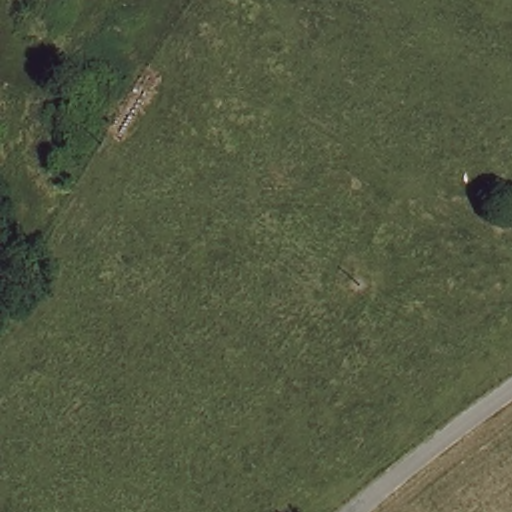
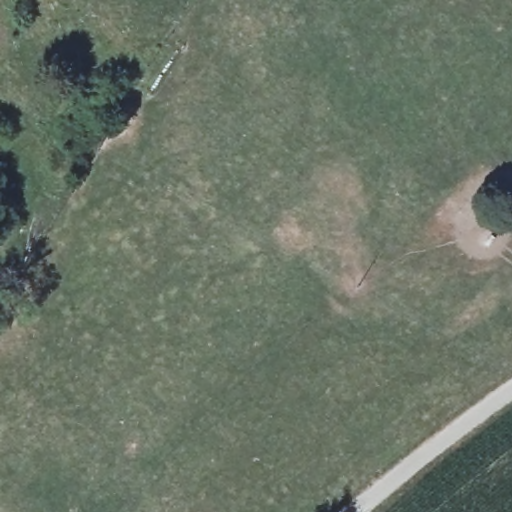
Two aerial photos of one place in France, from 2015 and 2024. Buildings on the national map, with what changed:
[]

